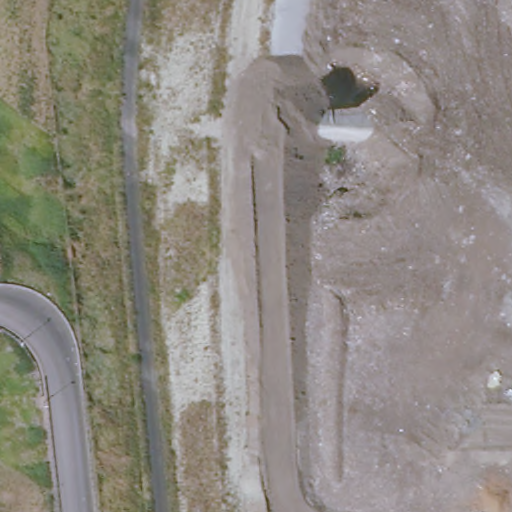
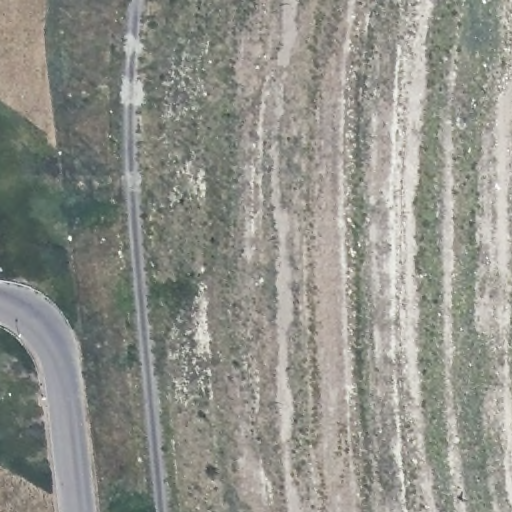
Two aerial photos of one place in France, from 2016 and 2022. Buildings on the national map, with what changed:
[]

